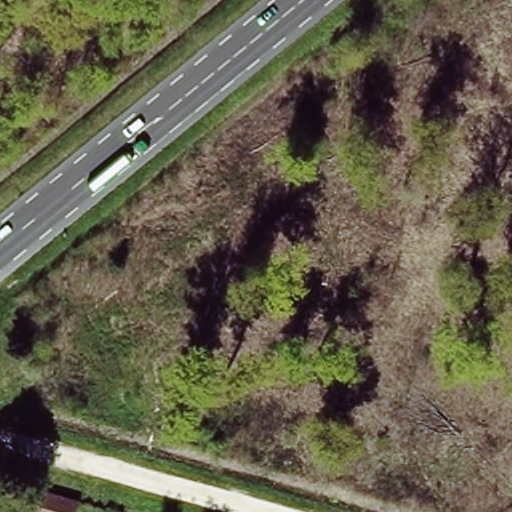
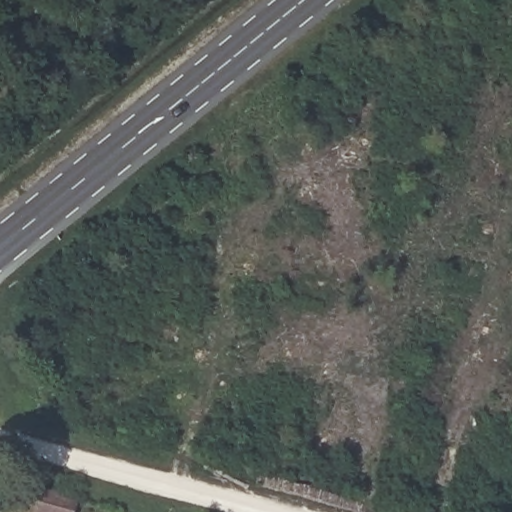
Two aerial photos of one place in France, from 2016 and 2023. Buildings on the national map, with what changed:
unchanged [(34,495),(73,503),(71,512),(30,512),(34,495)]

